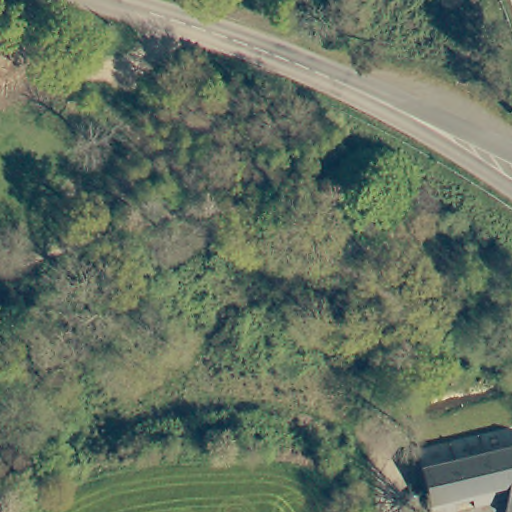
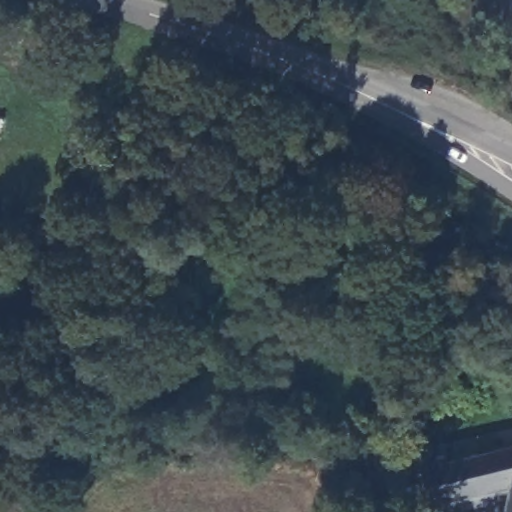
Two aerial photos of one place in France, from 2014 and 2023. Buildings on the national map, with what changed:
unchanged [(485,492),(488,505),(467,508),(465,496),(446,499),(449,511),(446,512),(425,512),(423,503),(416,467),(440,462),(448,460),(480,455),(512,451),(512,512),(499,512),(503,489),(485,492)]

